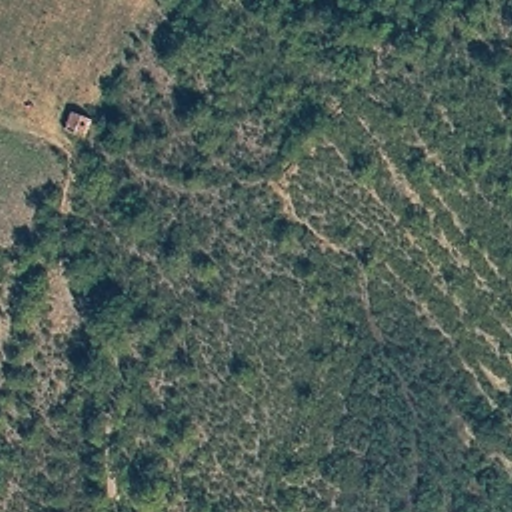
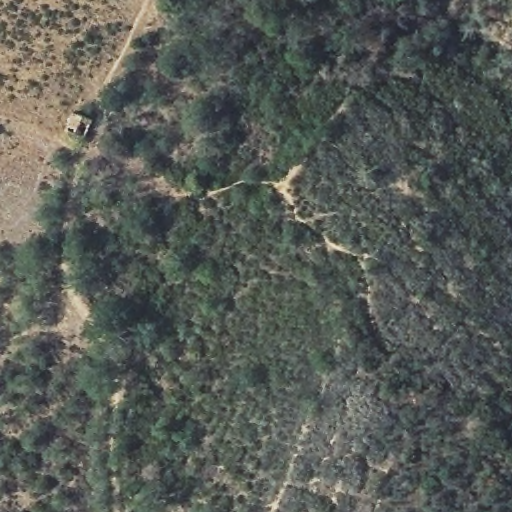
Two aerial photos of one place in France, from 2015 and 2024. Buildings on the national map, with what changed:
unchanged [(91,122),(84,138),(66,131),(71,114),(91,122)]

